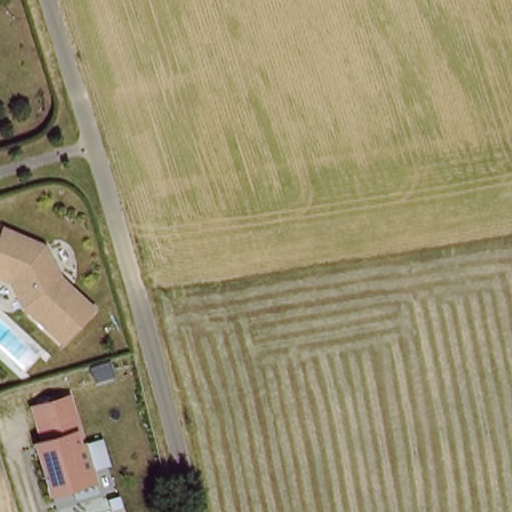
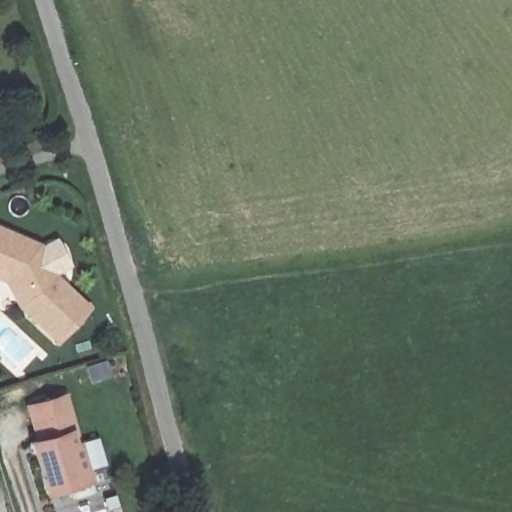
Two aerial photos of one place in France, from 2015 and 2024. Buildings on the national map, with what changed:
unchanged [(65,278),(97,309),(66,342),(28,306),(25,299),(0,279),(0,270),(0,251),(10,229),(49,247),(65,278)]
unchanged [(74,494),(52,501),(45,479),(48,478),(44,463),(40,464),(35,451),(48,447),(43,430),(40,432),(35,414),(60,406),(70,403),(75,419),(81,438),(77,439),(80,451),(85,450),(92,478),(95,487),(74,494)]

